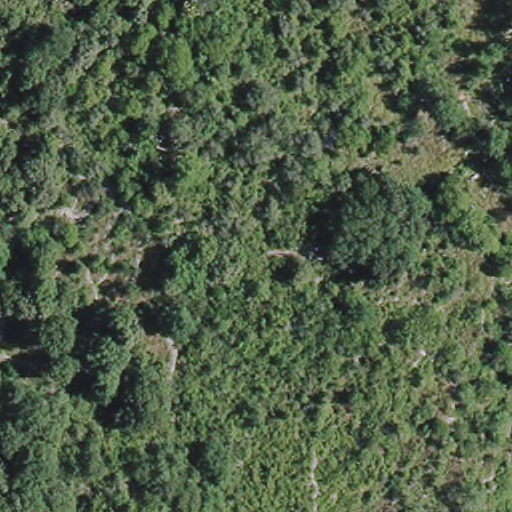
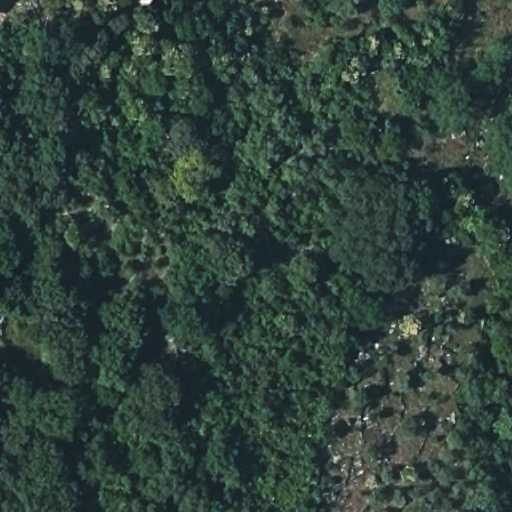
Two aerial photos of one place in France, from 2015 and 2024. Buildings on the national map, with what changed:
unchanged [(167,128),(185,134),(179,153),(160,148),(167,128)]
unchanged [(426,381),(428,400),(416,402),(413,385),(426,381)]

